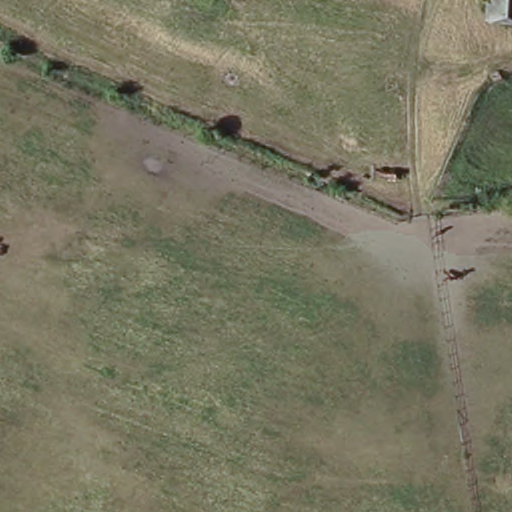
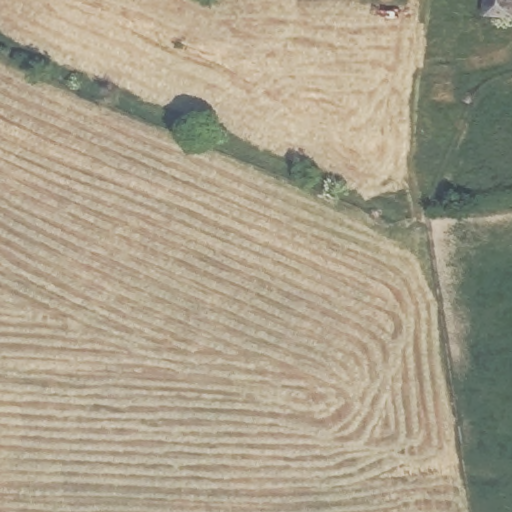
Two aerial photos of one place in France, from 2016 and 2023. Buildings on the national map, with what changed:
unchanged [(512,0),(512,24),(487,21),(489,0),(512,0)]

